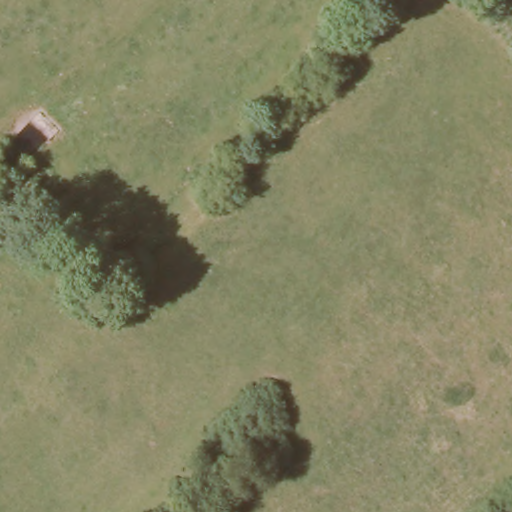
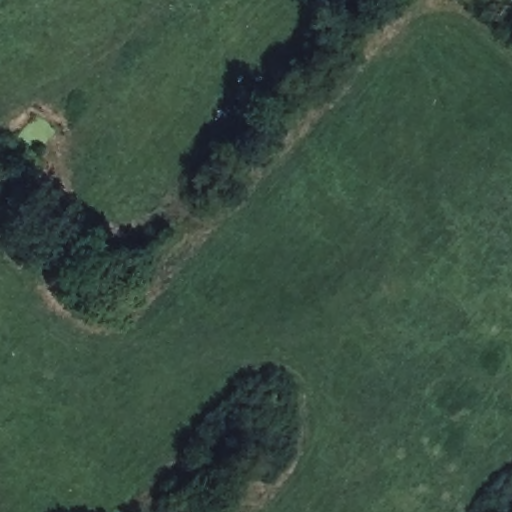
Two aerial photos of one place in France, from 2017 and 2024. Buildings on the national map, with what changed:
unchanged [(30,107),(38,114),(0,151),(0,137),(30,107)]

